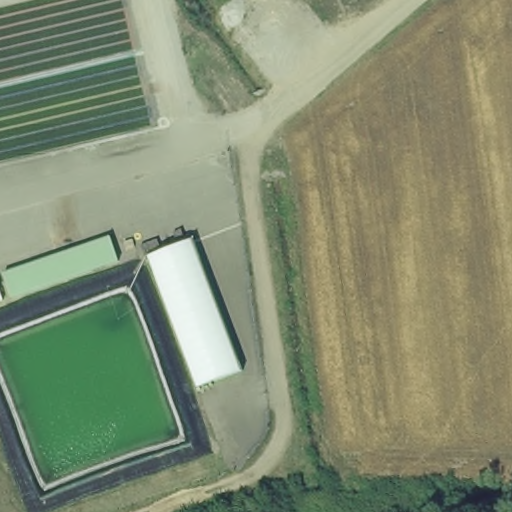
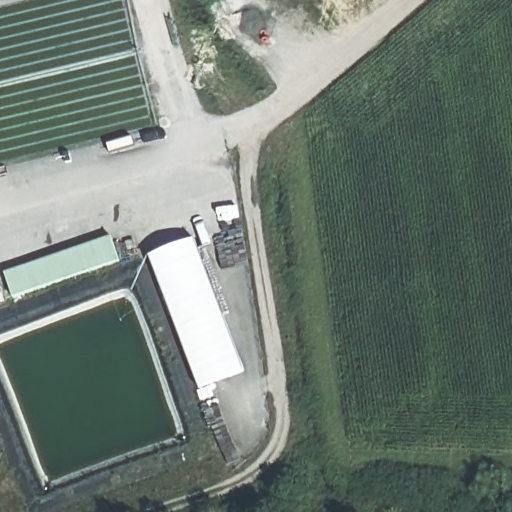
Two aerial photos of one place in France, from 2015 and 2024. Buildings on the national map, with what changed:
unchanged [(16,298),(9,274),(114,236),(123,261),(16,298)]
unchanged [(196,238),(247,372),(201,388),(152,256),(196,238)]

